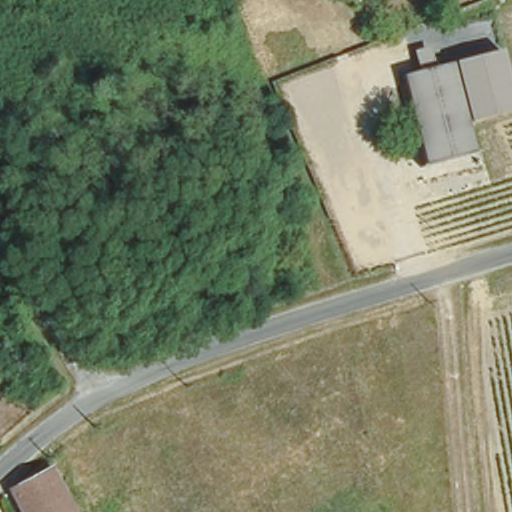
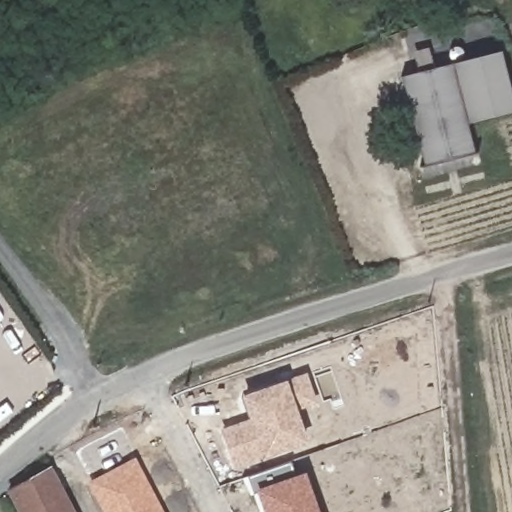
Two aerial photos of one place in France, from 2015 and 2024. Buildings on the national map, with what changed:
new [(499,50),(512,102),(512,110),(462,121),(448,64),(499,50)]
unchanged [(470,155),(420,168),(397,76),(448,64),(470,155)]
new [(220,428),(249,416),(241,393),(286,379),(306,372),(316,403),(297,409),(307,442),(262,459),(235,468),(220,428)]
new [(135,456),(164,512),(103,512),(87,482),(135,456)]
new [(250,494),(245,478),(291,462),(295,474),(305,471),(319,512),(260,512),(253,493),(250,494)]
unchanged [(79,512),(29,512),(14,484),(54,465),(79,512)]

